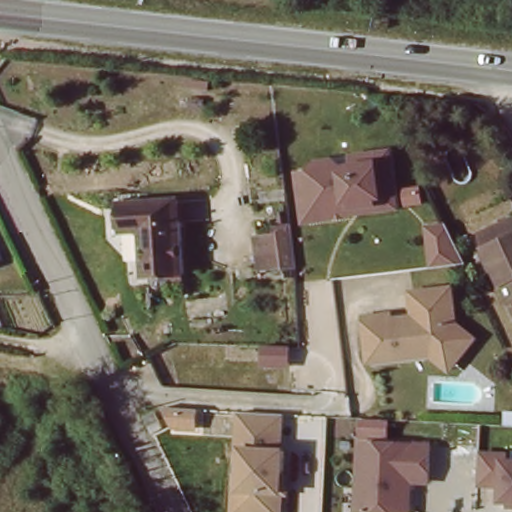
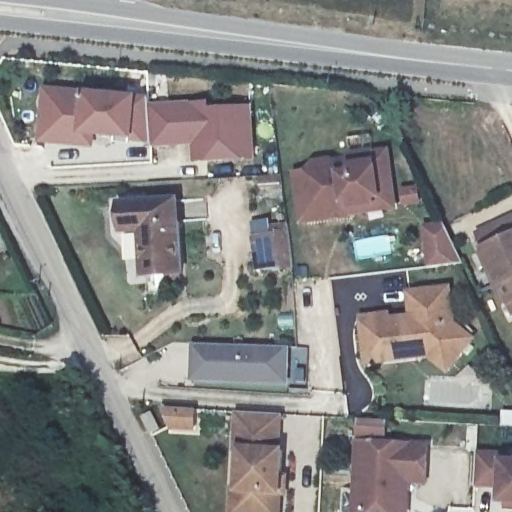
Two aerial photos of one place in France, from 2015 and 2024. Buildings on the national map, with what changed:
new [(56,89),(67,90),(63,131),(85,133),(86,125),(102,127),(102,132),(103,132),(102,144),(51,139),(56,89)]
new [(67,90),(160,99),(160,106),(162,140),(141,138),(141,136),(103,132),(102,132),(102,127),(86,125),(85,133),(63,131),(67,90)]
new [(205,141),(162,143),(162,140),(160,106),(218,103),(218,109),(260,106),(263,156),(217,158),(206,159),(205,141)]
unchanged [(389,154),(396,210),(349,217),(347,205),(381,200),(375,156),(389,154)]
unchanged [(312,175),(311,172),(316,166),(332,164),(338,169),(339,178),(353,175),(350,160),(375,156),(381,200),(347,205),(349,217),(349,219),(304,225),(297,177),(312,175)]
unchanged [(144,270),(140,225),(119,226),(117,198),(176,193),(181,266),(144,270)]
unchanged [(435,271),(430,230),(458,224),(467,261),(435,271)]
unchanged [(291,228),(304,226),(310,267),(297,269),(283,270),(278,230),(291,228)]
unchanged [(482,248),(512,234),(512,309),(505,295),(482,248)]
unchanged [(1,256),(0,257),(0,254),(1,256)]
unchanged [(432,359),(420,360),(370,366),(365,321),(391,318),(392,323),(415,320),(412,296),(452,292),(456,327),(475,342),(461,360),(450,374),(432,359)]
unchanged [(213,344),(293,345),(293,379),(247,379),(200,379),(200,344),(213,344)]
new [(203,410),(202,429),(178,428),(170,409),(203,410)]
unchanged [(246,490),(248,449),(243,449),(244,412),(287,414),(285,450),(289,450),(286,512),(240,512),(241,490),(246,490)]
unchanged [(423,449),(421,485),(404,484),(402,512),(351,512),(354,446),(423,449)]
unchanged [(512,467),(512,506),(505,506),(507,491),(487,490),(480,489),(480,475),(482,459),(488,459),(509,460),(509,466),(512,467)]

